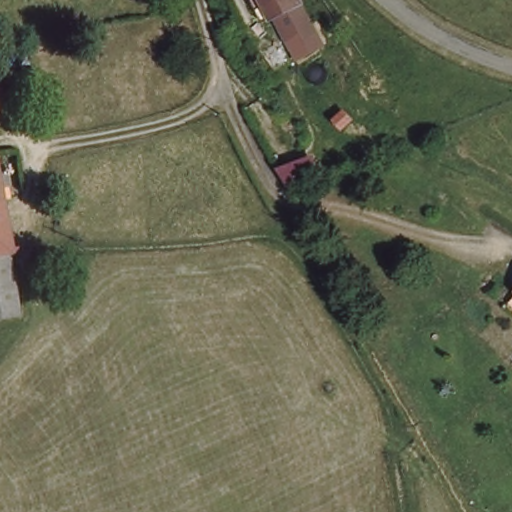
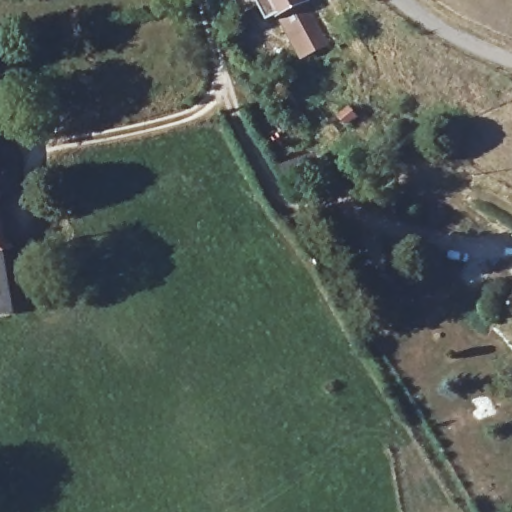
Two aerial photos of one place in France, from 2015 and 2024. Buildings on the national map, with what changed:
unchanged [(308,0),(325,31),(298,45),(281,14),(270,21),(260,0),(308,0)]
unchanged [(0,256),(0,249),(1,256),(0,256)]
unchanged [(0,256),(1,256),(10,296),(13,315),(0,318),(0,256)]

